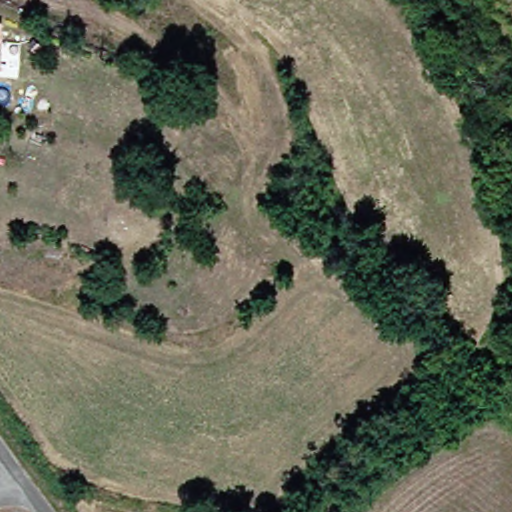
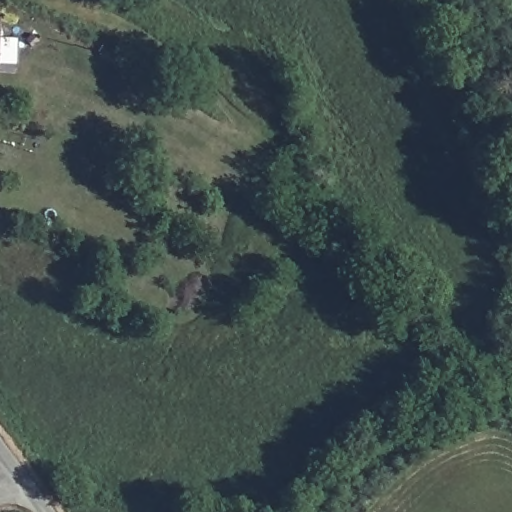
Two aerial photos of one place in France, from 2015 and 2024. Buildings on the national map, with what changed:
unchanged [(5,62),(0,62),(0,37),(5,37),(5,62)]

